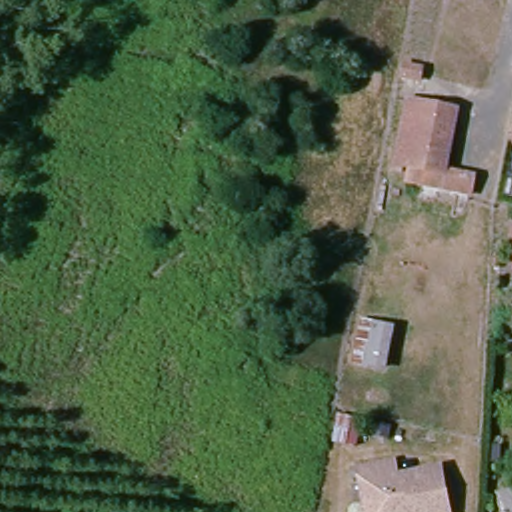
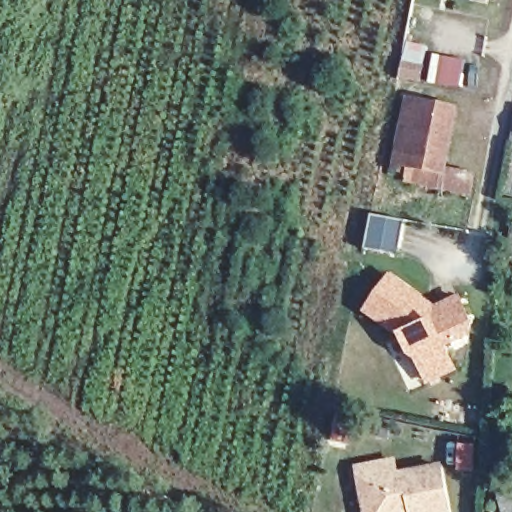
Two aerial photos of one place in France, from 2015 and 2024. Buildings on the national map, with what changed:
new [(461,89),(430,83),(435,54),(466,59),(461,89)]
unchanged [(432,64),(430,79),(414,76),(417,61),(432,64)]
unchanged [(458,108),(447,170),(473,174),(469,196),(402,184),(404,170),(391,168),(405,98),(458,108)]
unchanged [(507,146),(512,115),(512,147),(507,146)]
new [(399,255),(367,249),(373,215),(407,221),(399,255)]
unchanged [(502,269),(505,220),(512,220),(512,269),(502,269)]
new [(429,384),(417,359),(408,352),(400,333),(365,312),(391,273),(437,305),(461,294),(474,326),(473,337),(448,347),(459,371),(429,384)]
demolished [(391,325),(382,372),(347,360),(355,318),(391,325)]
unchanged [(400,510),(387,512),(365,512),(358,475),(355,460),(390,453),(393,467),(437,458),(447,508),(426,512),(400,512),(400,510)]
unchanged [(512,464),(512,512),(498,512),(491,469),(512,464)]

